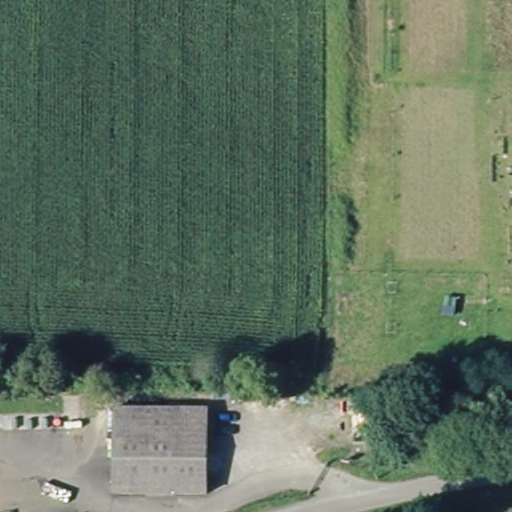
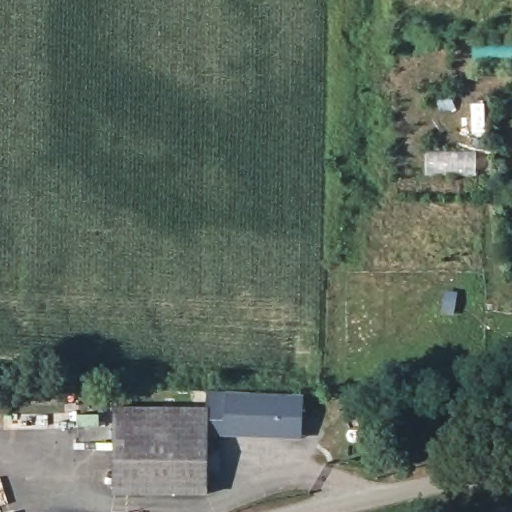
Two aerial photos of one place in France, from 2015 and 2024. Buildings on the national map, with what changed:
new [(473,43),(512,47),(512,64),(471,61),(473,43)]
new [(207,391),(303,396),(300,440),(210,436),(212,409),(205,409),(207,391)]
unchanged [(207,498),(116,498),(115,406),(212,409),(207,498)]

